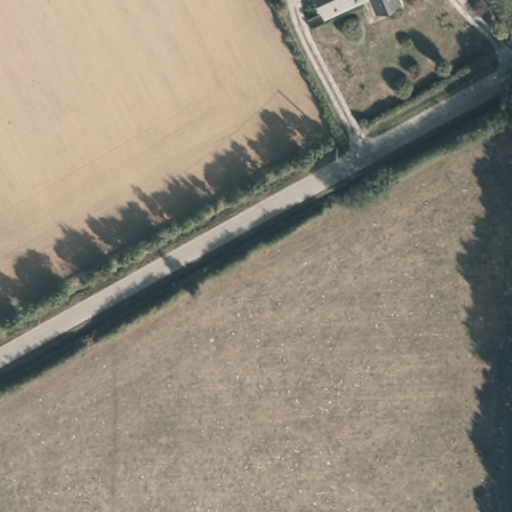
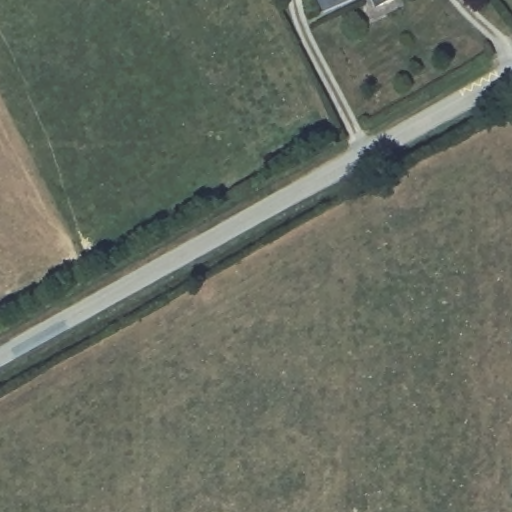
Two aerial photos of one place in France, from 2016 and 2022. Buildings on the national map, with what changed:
unchanged [(316,0),(367,0),(324,20),(316,0)]
unchanged [(376,16),(369,0),(399,0),(401,4),(376,16)]

